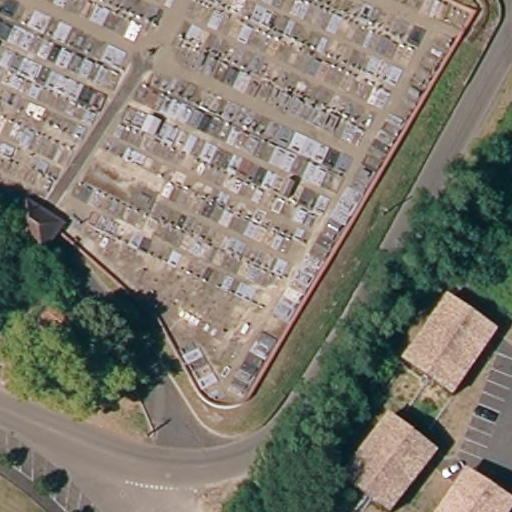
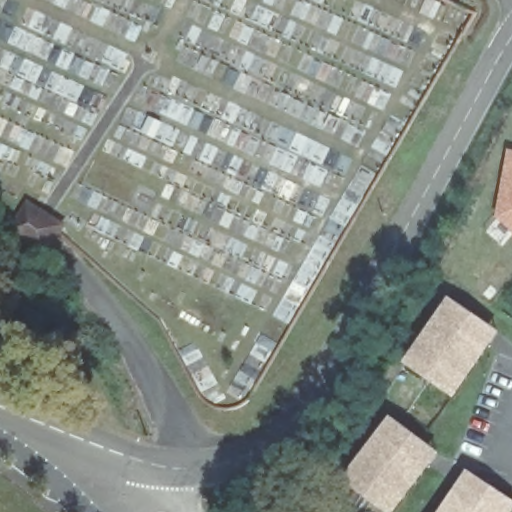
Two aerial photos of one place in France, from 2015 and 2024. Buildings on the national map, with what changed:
new [(507,149),(512,149),(512,233),(492,217),(507,149)]
unchanged [(9,224),(21,200),(60,226),(56,233),(39,263),(0,239),(9,224)]
unchanged [(55,335),(27,317),(42,294),(71,313),(55,335)]
unchanged [(453,397),(402,362),(448,297),(500,331),(453,397)]
unchanged [(440,451),(396,512),(383,512),(344,481),(390,415),(440,451)]
unchanged [(512,499),(512,512),(439,512),(468,469),(512,499)]

